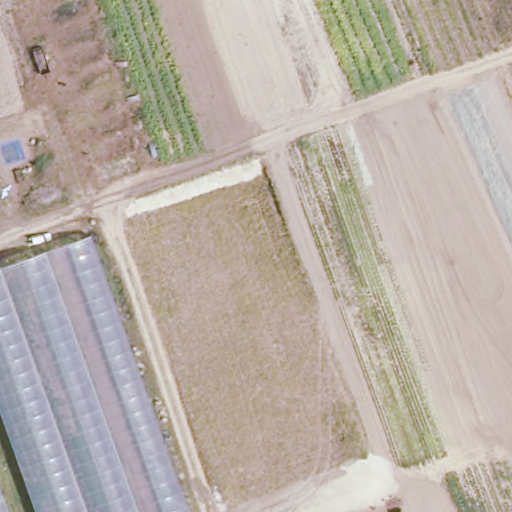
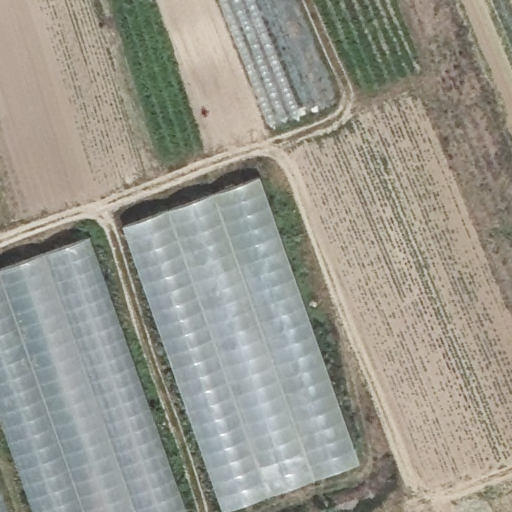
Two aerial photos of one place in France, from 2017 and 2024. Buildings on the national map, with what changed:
new [(120,226),(256,177),(359,458),(223,508),(120,226)]
unchanged [(188,512),(99,512),(14,265),(88,238),(188,512)]
unchanged [(35,512),(0,417),(0,270),(14,265),(99,512),(35,512)]
unchanged [(0,512),(0,480),(11,512),(0,512)]

